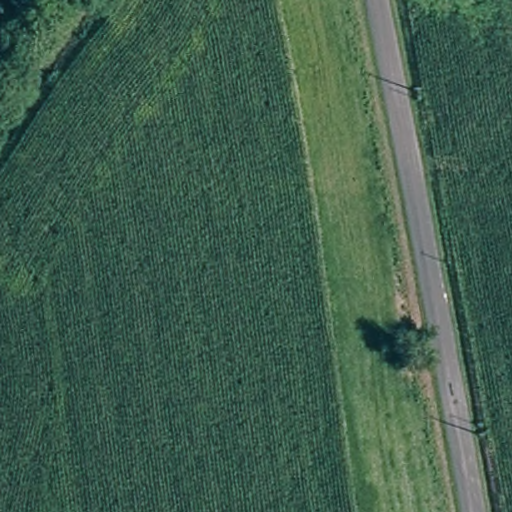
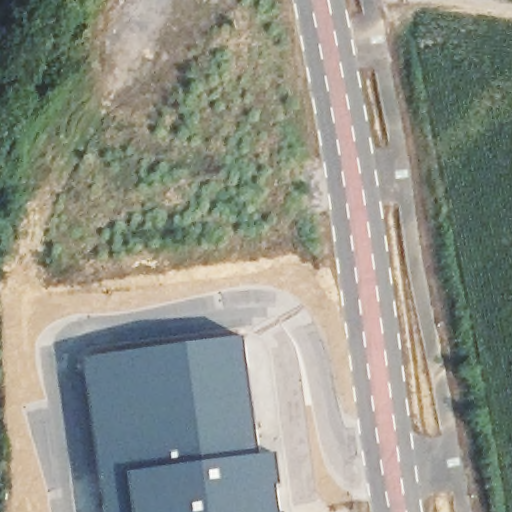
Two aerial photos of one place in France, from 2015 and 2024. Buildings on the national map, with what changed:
new [(104,495),(99,467),(84,359),(190,343),(245,337),(262,454),(278,453),(282,501),(284,512),(130,512),(128,493),(104,495)]

